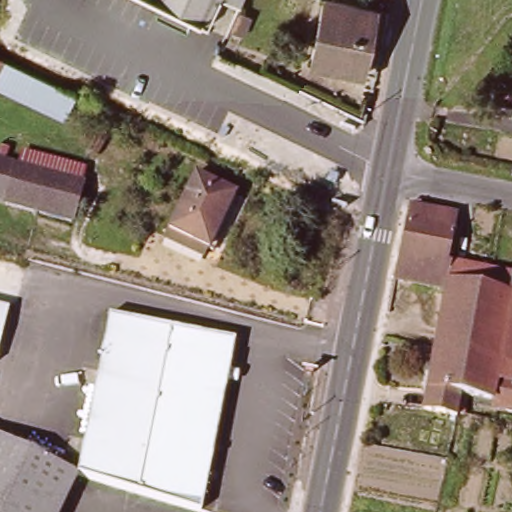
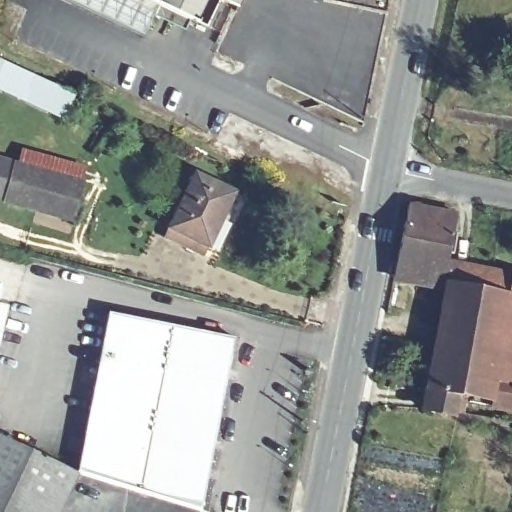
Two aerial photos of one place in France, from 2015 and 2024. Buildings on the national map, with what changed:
unchanged [(204,27),(148,0),(217,0),(204,27)]
unchanged [(238,7),(223,0),(241,0),(238,7)]
demolished [(384,70),(319,57),(331,0),(362,0),(397,7),(384,70)]
unchanged [(242,36),(228,30),(236,12),(249,17),(242,36)]
unchanged [(65,122),(0,90),(0,60),(76,96),(65,122)]
unchanged [(34,147),(100,166),(84,222),(0,198),(0,152),(29,160),(34,147)]
unchanged [(210,170),(249,189),(236,216),(241,219),(229,245),(220,242),(217,250),(182,234),(185,226),(210,170)]
unchanged [(471,393),(468,413),(437,410),(458,289),(408,277),(424,203),(469,212),(461,259),(495,266),(507,267),(512,268),(512,400),(471,393)]
unchanged [(0,332),(0,300),(8,302),(0,332)]
unchanged [(193,502),(89,469),(123,310),(249,333),(214,508),(193,502)]
unchanged [(67,512),(0,512),(0,424),(89,469),(67,512)]

